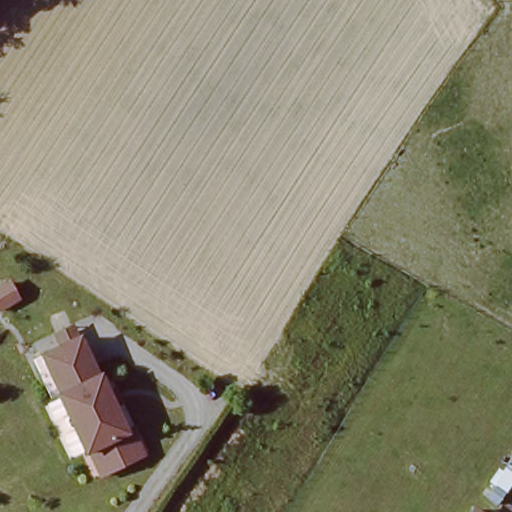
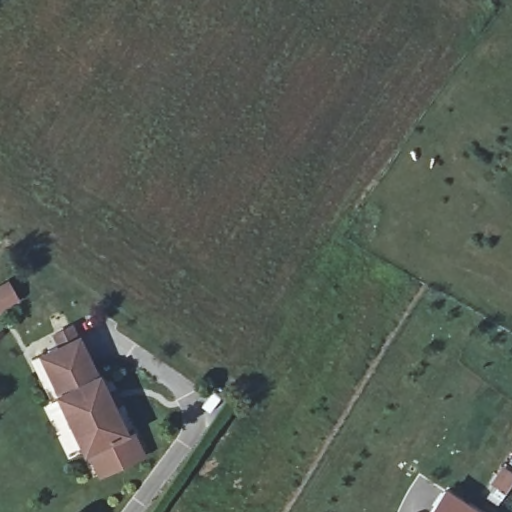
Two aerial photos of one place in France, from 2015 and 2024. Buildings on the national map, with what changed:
unchanged [(102,378),(110,395),(116,406),(130,433),(89,455),(77,432),(71,430),(67,423),(67,417),(60,397),(58,398),(42,358),(61,350),(56,338),(74,330),(79,342),(97,380),(102,378)]
new [(445,489),(481,512),(429,512),(445,489)]

